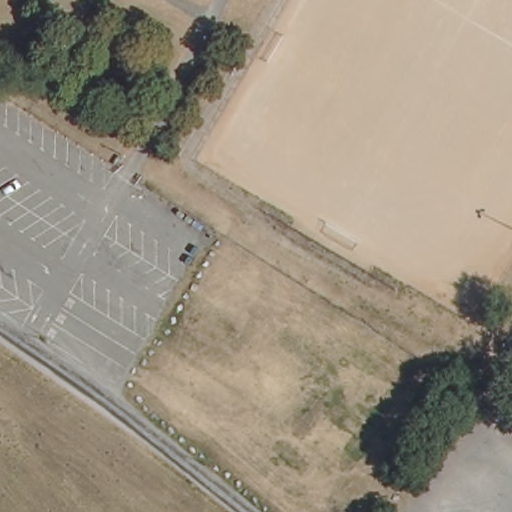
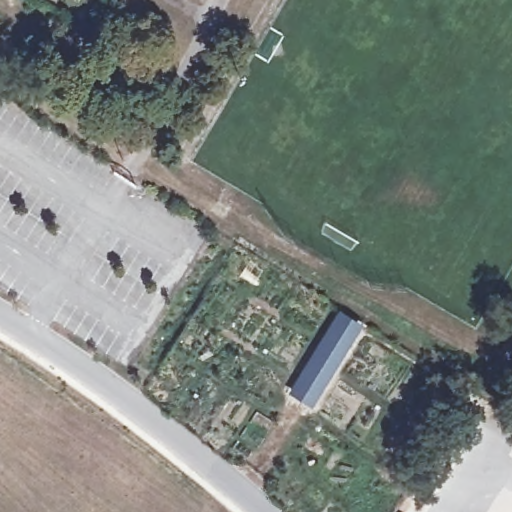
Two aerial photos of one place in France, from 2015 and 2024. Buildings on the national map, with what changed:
new [(338,308),(363,323),(312,406),(289,391),(338,308)]

